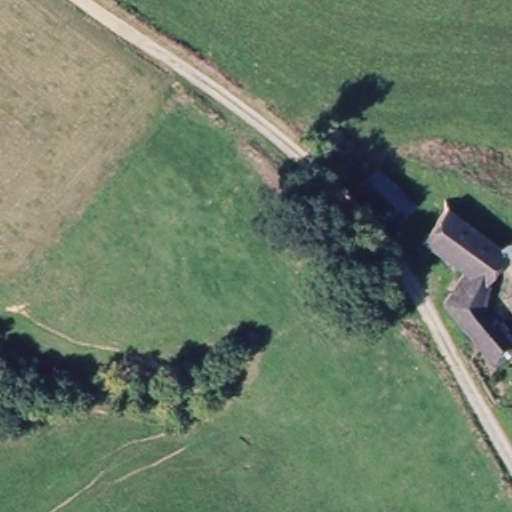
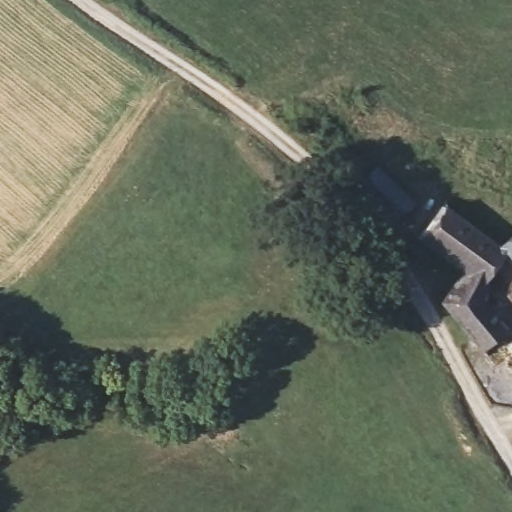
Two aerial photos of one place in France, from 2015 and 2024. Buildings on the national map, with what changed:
unchanged [(377,169),(410,203),(389,226),(355,190),(377,169)]
unchanged [(444,304),(465,275),(421,241),(441,211),(495,249),(512,239),(512,267),(502,256),(478,275),(487,307),(512,341),(512,356),(490,371),(444,304)]

